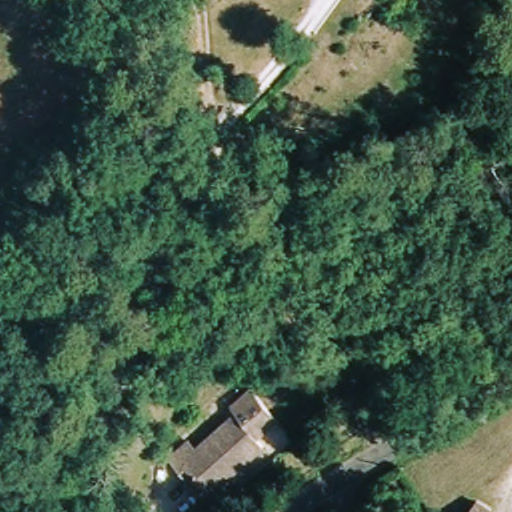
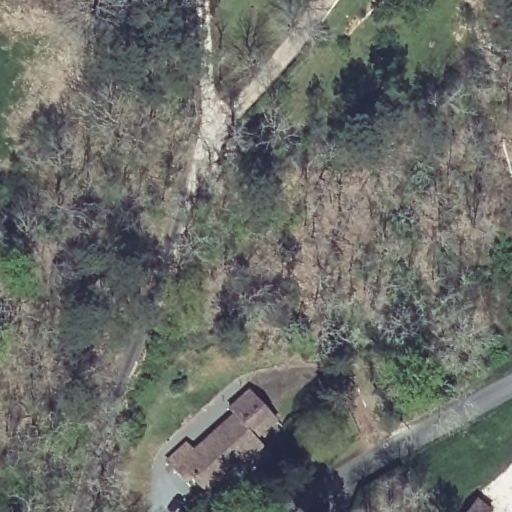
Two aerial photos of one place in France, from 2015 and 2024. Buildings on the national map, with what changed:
unchanged [(221,485),(214,476),(199,487),(193,478),(183,486),(169,470),(189,453),(195,461),(236,426),(224,412),(248,392),(269,416),(274,423),(253,441),(261,452),(221,485)]
unchanged [(488,512),(467,512),(476,501),(488,512)]

